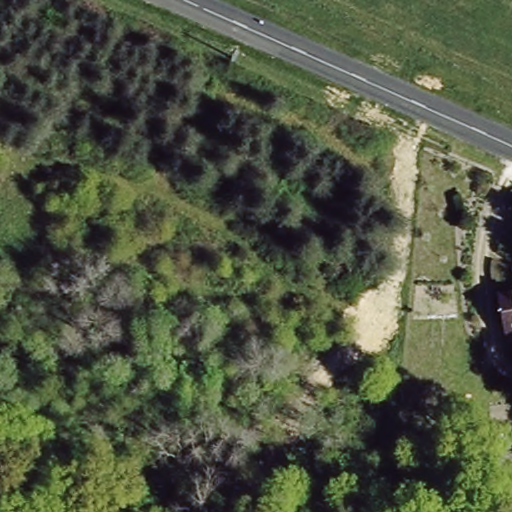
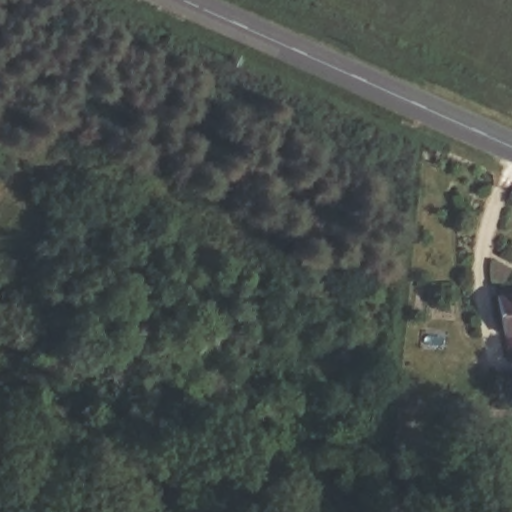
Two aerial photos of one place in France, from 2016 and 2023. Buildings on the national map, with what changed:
unchanged [(504,326),(498,297),(512,294),(512,324),(504,326)]

